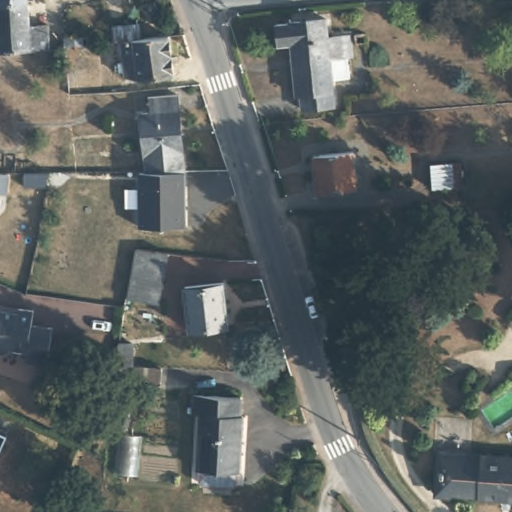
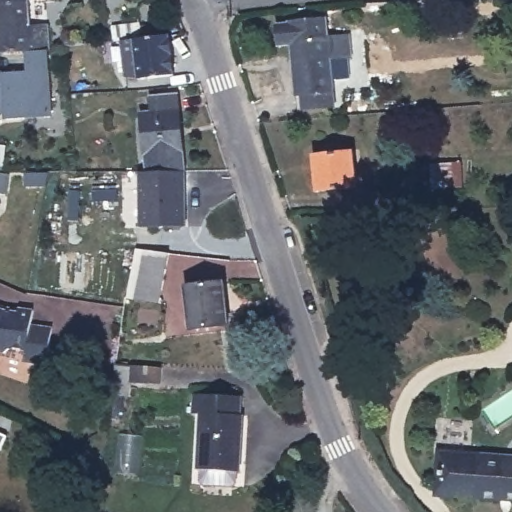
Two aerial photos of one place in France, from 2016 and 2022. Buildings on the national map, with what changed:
unchanged [(28,0),(30,25),(46,24),(48,47),(0,52),(0,0),(28,0)]
unchanged [(346,48),(347,70),(331,72),(334,97),(300,101),(298,84),(294,84),(290,35),(276,36),(275,15),(287,13),(287,12),(324,8),(326,26),(349,25),(351,47),(346,48)]
unchanged [(172,75),(136,79),(127,76),(123,40),(168,35),(172,75)]
new [(53,116),(4,119),(4,112),(0,112),(0,71),(2,71),(2,74),(28,71),(27,50),(48,47),(53,116)]
unchanged [(152,172),(146,112),(155,112),(154,96),(181,94),(188,172),(152,172)]
unchanged [(358,186),(318,191),(314,156),(355,151),(358,186)]
unchanged [(462,187),(433,189),(432,165),(461,162),(462,187)]
unchanged [(188,227),(144,227),(145,172),(152,172),(188,172),(188,227)]
unchanged [(161,302),(128,297),(136,247),(170,252),(161,302)]
unchanged [(227,327),(191,330),(186,287),(224,283),(227,327)]
unchanged [(8,312),(20,313),(21,308),(36,310),(34,323),(54,326),(48,363),(27,361),(28,351),(10,348),(6,351),(0,351),(0,309),(8,312)]
unchanged [(162,368),(162,384),(131,383),(131,396),(112,395),(116,366),(162,368)]
unchanged [(234,476),(204,475),(202,472),(202,460),(198,459),(201,402),(195,402),(196,383),(242,386),(241,403),(244,405),(241,462),(238,462),(237,473),(234,476)]
unchanged [(474,492),(434,490),(437,455),(478,457),(478,454),(512,457),(512,498),(474,495),(474,492)]

